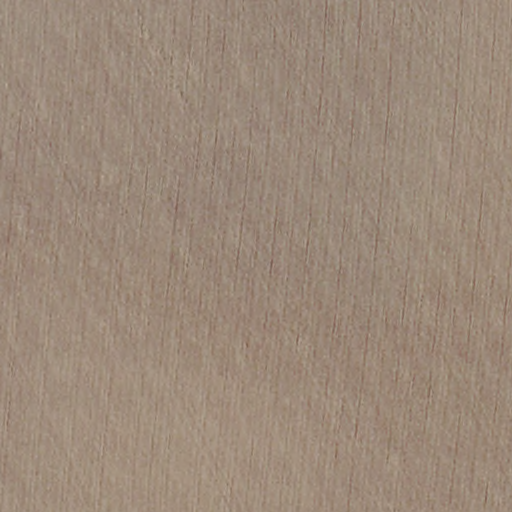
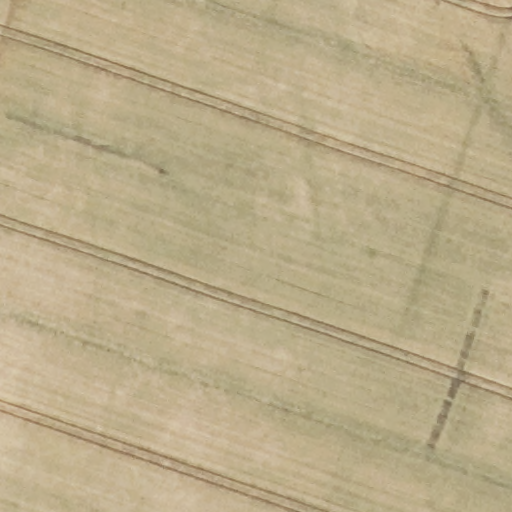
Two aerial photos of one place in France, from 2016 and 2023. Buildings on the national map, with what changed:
[]

